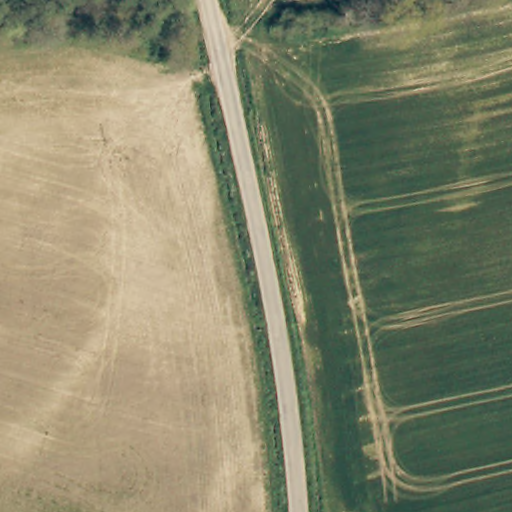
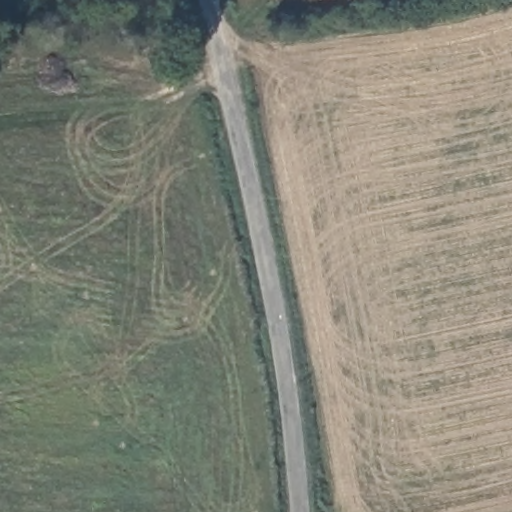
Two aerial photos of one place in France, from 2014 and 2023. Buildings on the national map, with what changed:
[]

